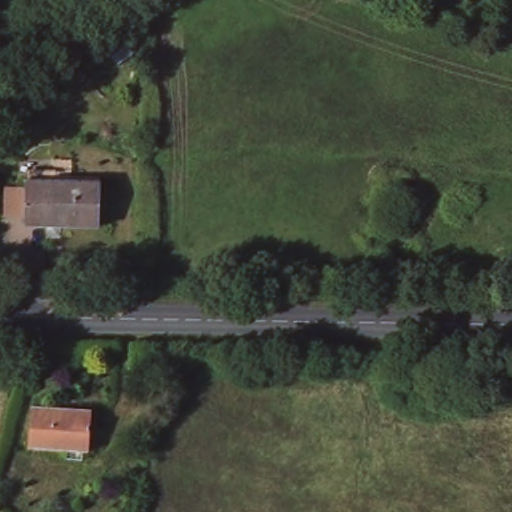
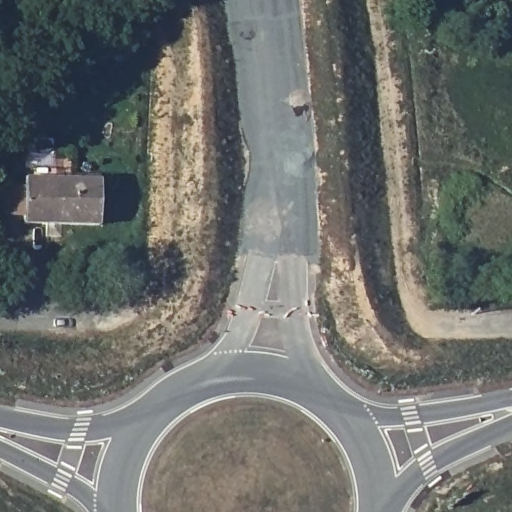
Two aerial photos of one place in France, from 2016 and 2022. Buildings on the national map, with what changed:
unchanged [(99,180),(99,225),(25,224),(26,179),(99,180)]
demolished [(35,405),(92,411),(88,450),(30,443),(35,405)]

